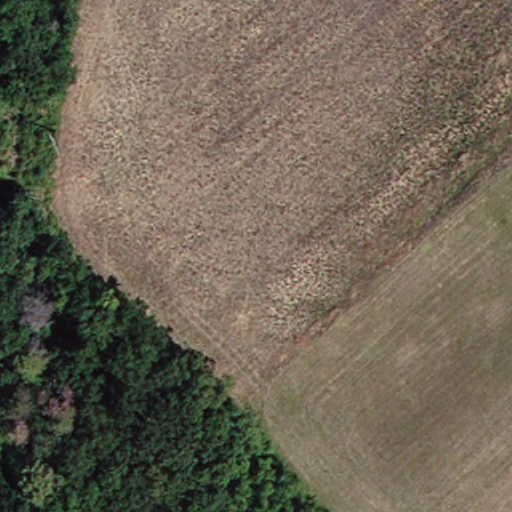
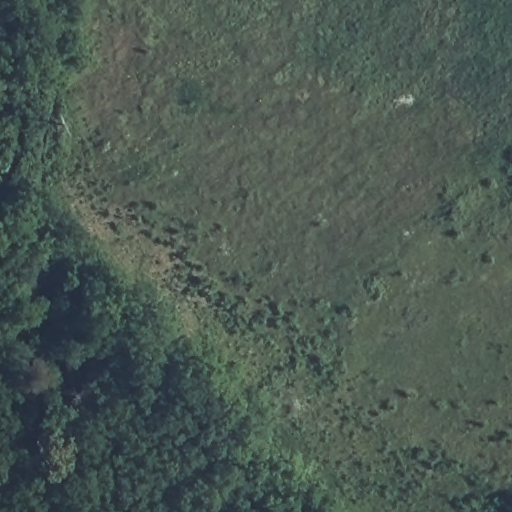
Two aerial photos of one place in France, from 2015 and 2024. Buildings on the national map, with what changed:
[]

